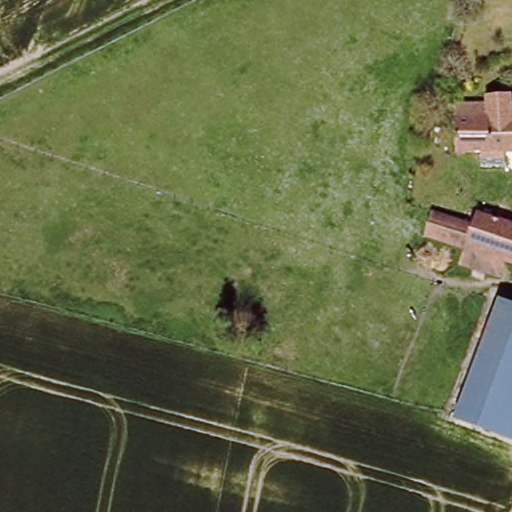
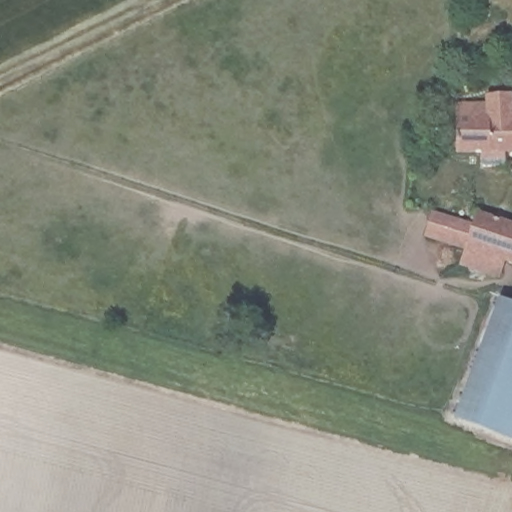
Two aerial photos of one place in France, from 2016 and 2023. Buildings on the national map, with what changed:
unchanged [(501,159),(486,160),(486,153),(459,153),(459,104),(489,104),(489,94),(512,94),(512,151),(501,152),(501,159)]
unchanged [(501,279),(458,264),(463,249),(424,237),(432,214),(472,225),(476,215),(512,228),(512,264),(509,263),(501,279)]
unchanged [(504,295),(512,298),(512,431),(461,412),(504,295)]

